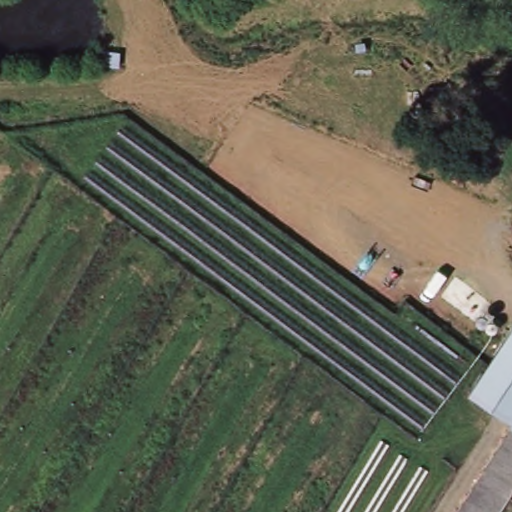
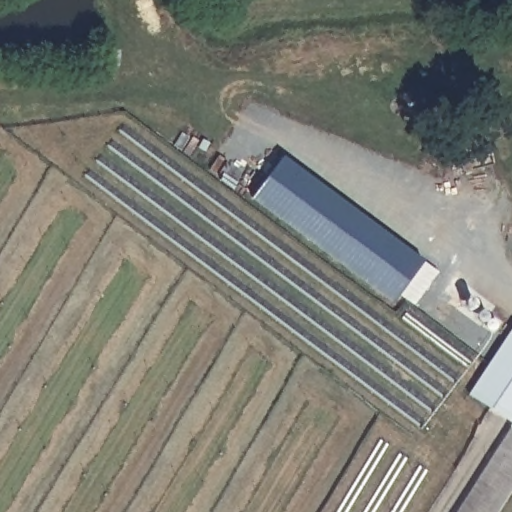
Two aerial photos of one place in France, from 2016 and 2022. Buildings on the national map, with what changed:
unchanged [(467,81),(468,89),(460,90),(458,82),(467,81)]
unchanged [(463,140),(472,170),(464,172),(455,142),(463,140)]
new [(252,197),(281,157),(422,261),(393,302),(252,197)]
unchanged [(502,343),(512,328),(512,422),(469,394),(502,343)]
unchanged [(512,490),(498,512),(456,512),(512,424),(512,490)]

